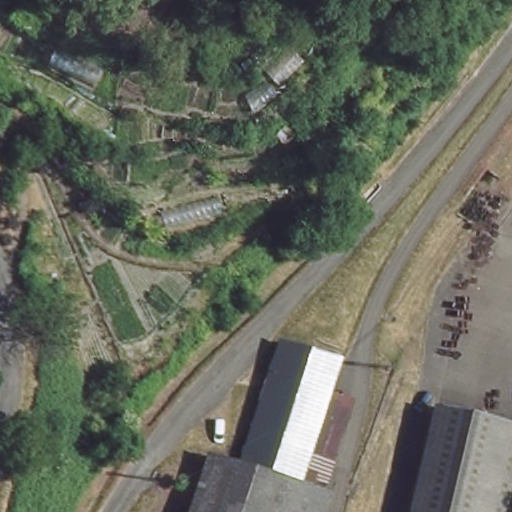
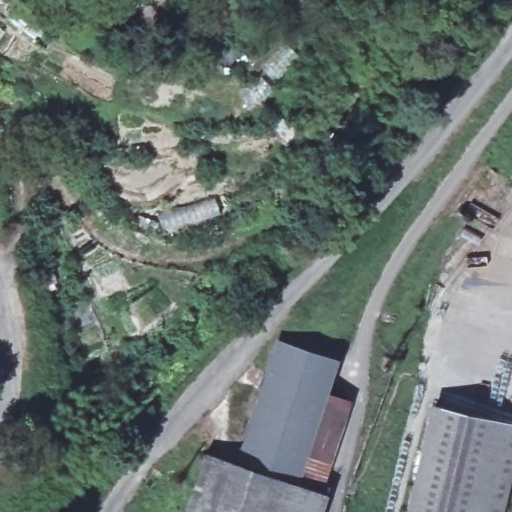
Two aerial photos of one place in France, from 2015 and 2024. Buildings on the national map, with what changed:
unchanged [(200,451),(230,461),(232,460),(247,415),(272,336),(332,355),(322,385),(322,388),(342,395),(313,488),(323,492),(317,512),(180,512),(200,451)]
unchanged [(512,421),(512,455),(499,512),(402,512),(408,486),(427,400),(512,421)]

